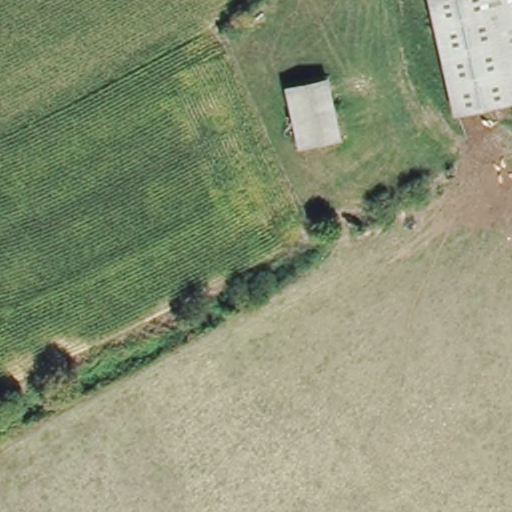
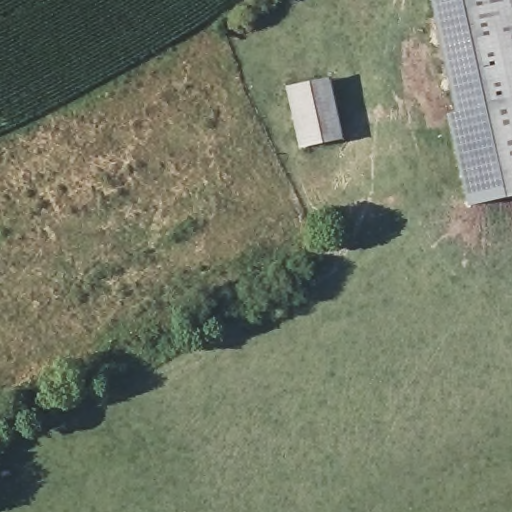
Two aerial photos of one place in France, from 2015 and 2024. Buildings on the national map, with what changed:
unchanged [(512,0),(512,97),(459,107),(435,2),(447,0),(512,0)]
unchanged [(327,82),(338,142),(299,150),(288,91),(327,82)]
new [(469,208),(448,114),(459,111),(459,107),(512,97),(512,198),(469,208)]

